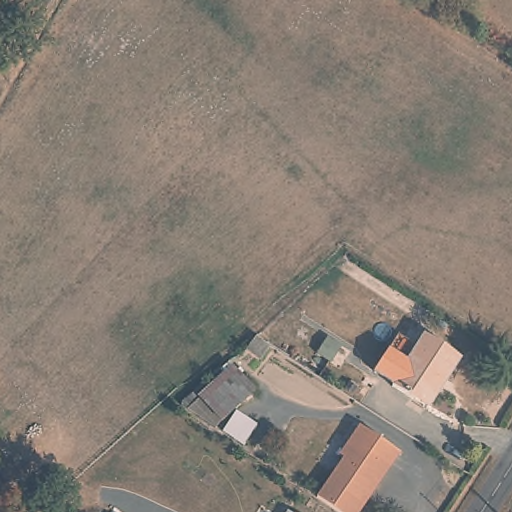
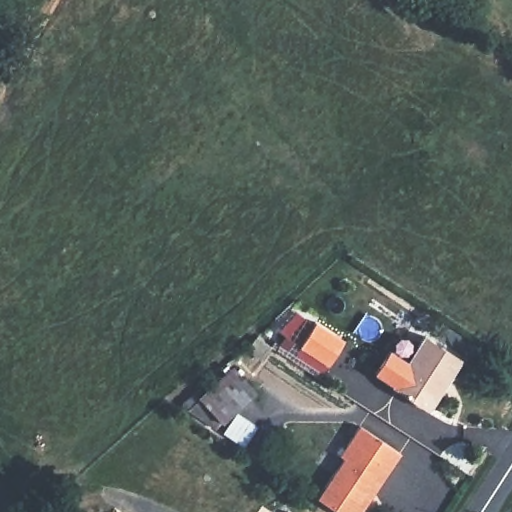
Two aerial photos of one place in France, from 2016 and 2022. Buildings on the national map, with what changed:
unchanged [(392,385),(425,335),(461,358),(428,409),(392,385)]
unchanged [(256,391),(236,411),(279,440),(266,462),(219,428),(180,398),(202,377),(208,384),(234,364),(256,391)]
unchanged [(340,454),(360,424),(400,451),(360,512),(339,512),(317,497),(344,457),(340,454)]
unchanged [(292,512),(287,512),(289,509),(292,512)]

